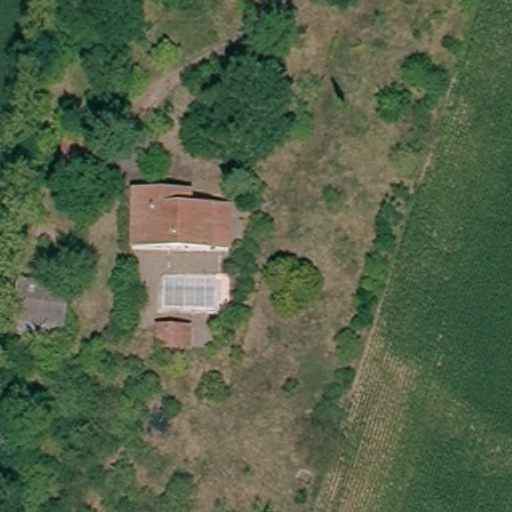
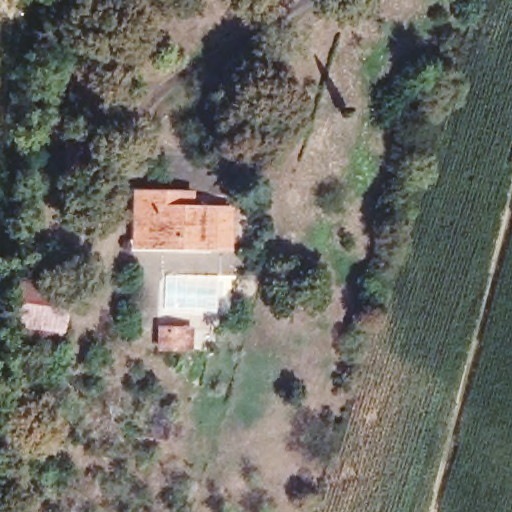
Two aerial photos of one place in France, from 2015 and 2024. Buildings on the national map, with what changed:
unchanged [(100,145),(100,181),(66,182),(66,147),(100,145)]
unchanged [(180,197),(180,208),(233,209),(232,250),(134,248),(135,196),(180,197)]
unchanged [(65,340),(17,333),(24,279),(73,287),(65,340)]
unchanged [(196,329),(195,350),(164,348),(164,328),(196,329)]

